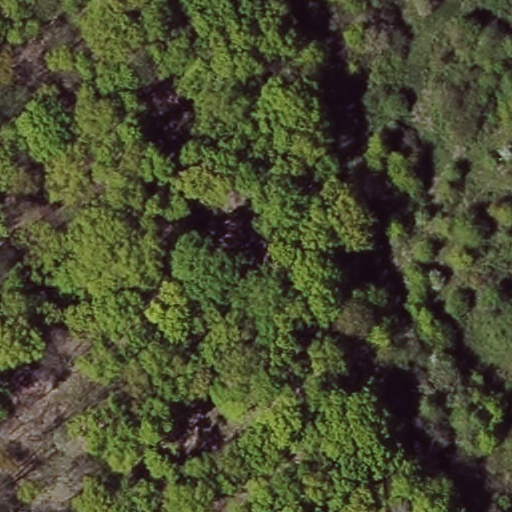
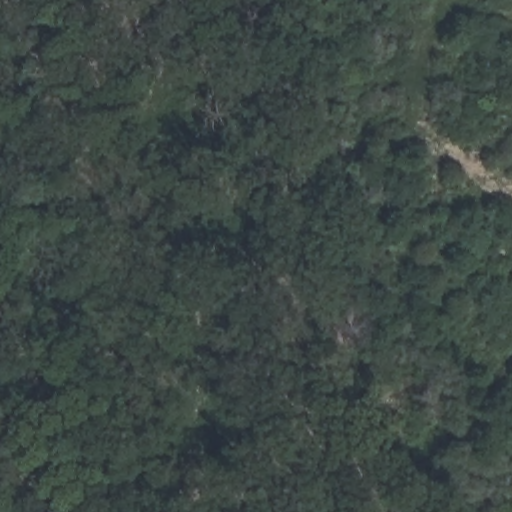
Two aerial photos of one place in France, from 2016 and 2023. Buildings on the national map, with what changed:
[]

